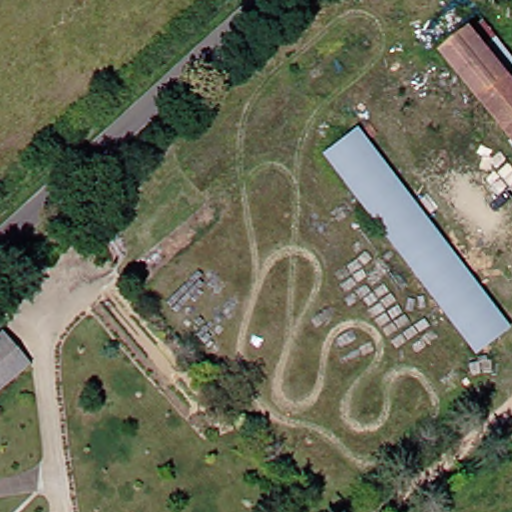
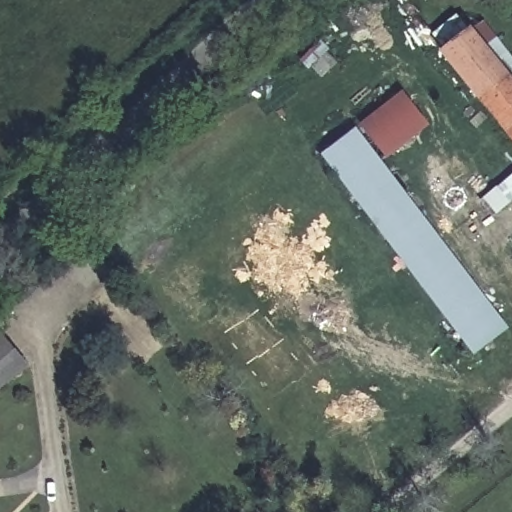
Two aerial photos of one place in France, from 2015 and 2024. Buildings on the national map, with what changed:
unchanged [(432,45),(458,25),(512,89),(512,141),(432,45)]
new [(387,157),(361,124),(403,90),(430,124),(387,157)]
unchanged [(463,350),(308,146),(341,125),(496,328),(463,350)]
unchanged [(0,374),(0,343),(15,361),(0,374)]

